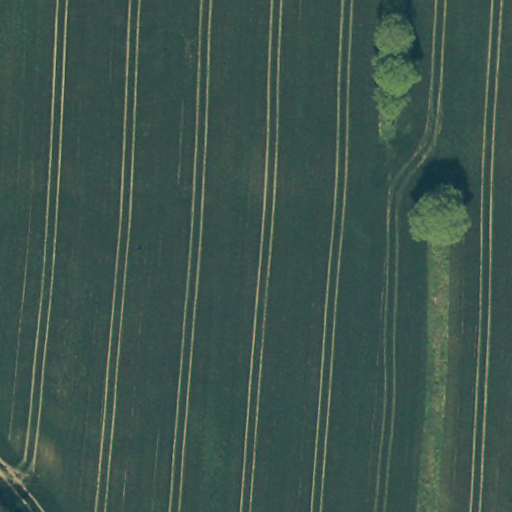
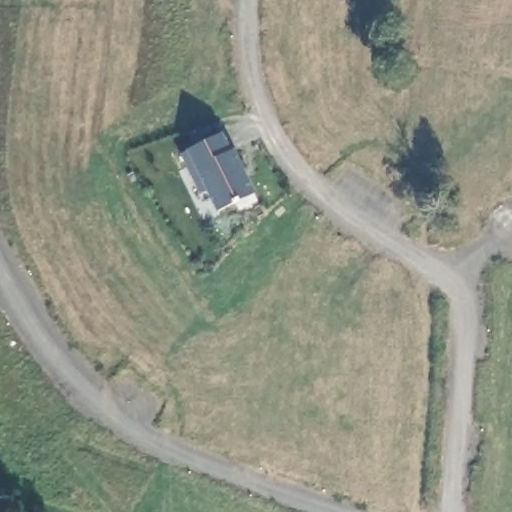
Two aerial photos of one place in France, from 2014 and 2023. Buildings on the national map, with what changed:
new [(239,212),(235,203),(218,212),(208,192),(203,195),(182,152),(226,131),(259,201),(239,212)]

